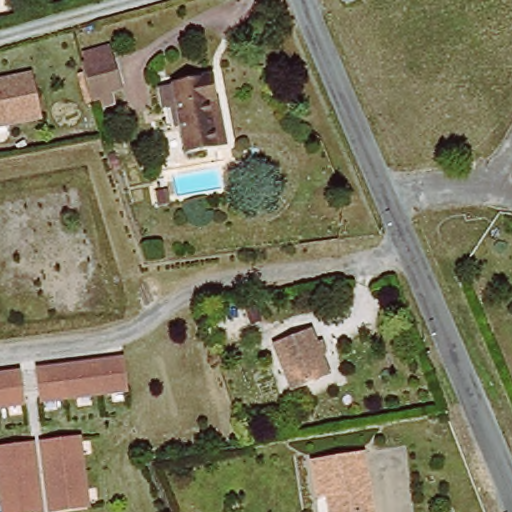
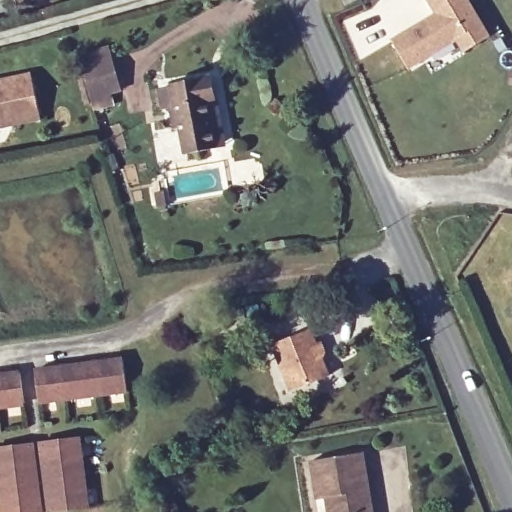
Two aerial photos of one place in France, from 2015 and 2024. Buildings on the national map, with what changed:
unchanged [(339,0),(351,0),(341,5),(339,0)]
new [(429,0),(466,0),(489,37),(466,51),(458,38),(409,68),(392,41),(427,21),(438,14),(429,0)]
unchanged [(109,104),(91,109),(79,65),(109,57),(120,95),(108,98),(109,104)]
unchanged [(35,71),(46,115),(0,125),(0,78),(35,71)]
unchanged [(186,159),(178,109),(167,111),(163,90),(209,82),(221,153),(186,159)]
unchanged [(331,381),(291,398),(271,354),(311,337),(331,381)]
unchanged [(125,359),(130,388),(41,400),(36,371),(125,359)]
unchanged [(21,372),(25,403),(0,406),(0,375),(21,372)]
unchanged [(80,435),(90,503),(51,510),(43,441),(80,435)]
unchanged [(33,443),(43,512),(38,512),(6,512),(0,470),(0,447),(33,443)]
unchanged [(364,460),(374,512),(333,512),(331,502),(319,504),(317,488),(313,468),(364,460)]

